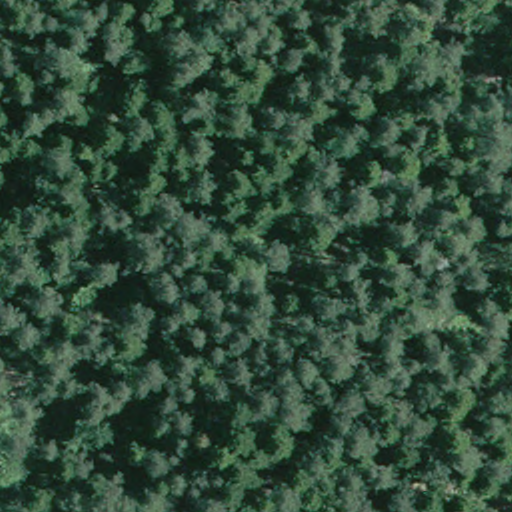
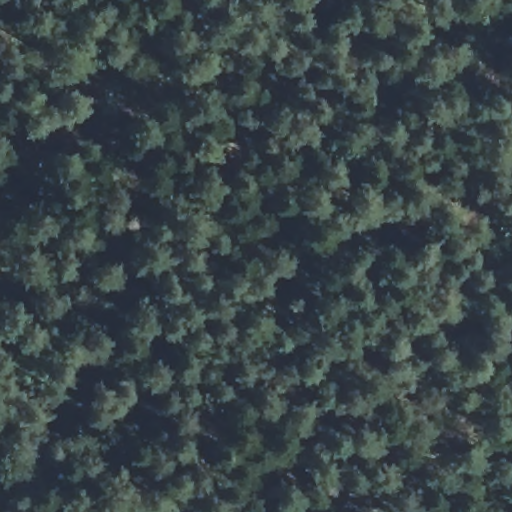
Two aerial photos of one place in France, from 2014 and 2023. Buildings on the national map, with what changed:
[]

